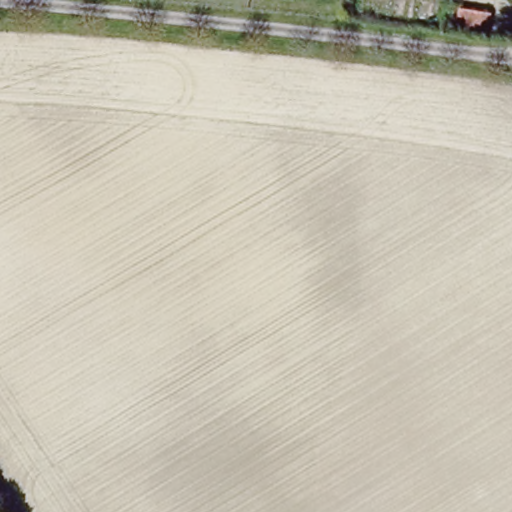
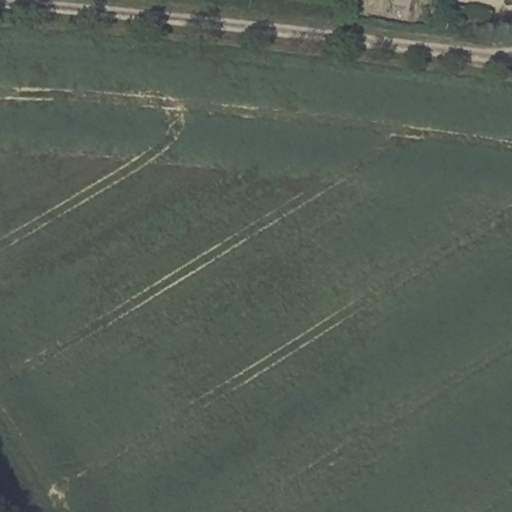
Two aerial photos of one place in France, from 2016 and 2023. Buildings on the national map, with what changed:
[]

